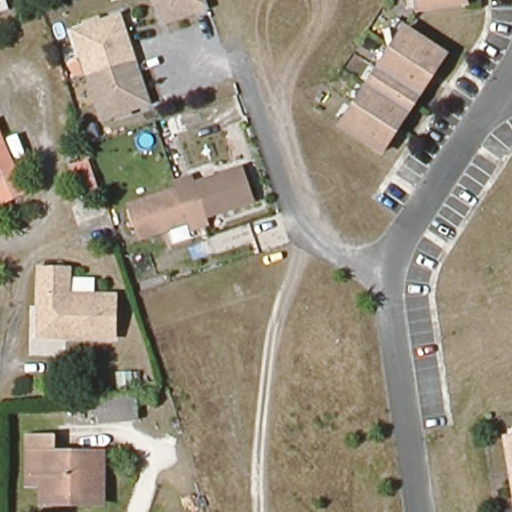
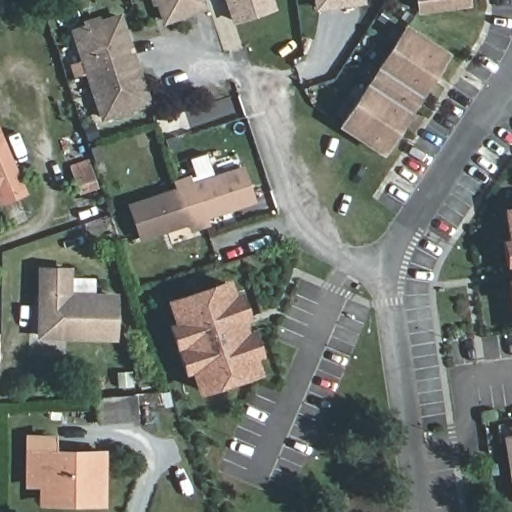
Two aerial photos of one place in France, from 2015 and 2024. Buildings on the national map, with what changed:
new [(0,9),(0,0),(3,0),(5,6),(0,9)]
unchanged [(161,23),(153,0),(201,0),(204,8),(161,23)]
new [(224,0),(274,0),(277,9),(232,24),(224,0)]
new [(313,0),(364,0),(365,4),(315,11),(313,0)]
unchanged [(416,15),(414,0),(468,0),(469,8),(416,15)]
unchanged [(143,102),(98,117),(69,30),(114,14),(143,102)]
unchanged [(445,55),(382,153),(341,126),(404,29),(445,55)]
unchanged [(0,197),(0,137),(21,188),(0,197)]
unchanged [(249,200),(205,215),(208,223),(185,232),(183,224),(140,238),(129,205),(176,189),(174,184),(193,179),(194,184),(238,169),(249,200)]
unchanged [(92,170),(98,189),(82,194),(76,177),(92,170)]
new [(510,307),(506,278),(512,278),(510,267),(505,268),(501,238),(506,238),(502,207),(512,205),(512,307),(510,307)]
unchanged [(69,269),(69,279),(96,278),(97,295),(111,295),(112,337),(37,337),(36,269),(69,269)]
new [(197,394),(190,373),(183,375),(167,325),(173,323),(165,299),(231,278),(236,292),(240,291),(260,355),(255,356),(261,374),(197,394)]
unchanged [(134,420),(95,424),(93,399),(132,396),(134,420)]
unchanged [(103,498),(44,498),(44,481),(31,481),(31,434),(54,434),(55,451),(103,451),(103,498)]
unchanged [(507,439),(512,438),(512,470),(507,439)]

